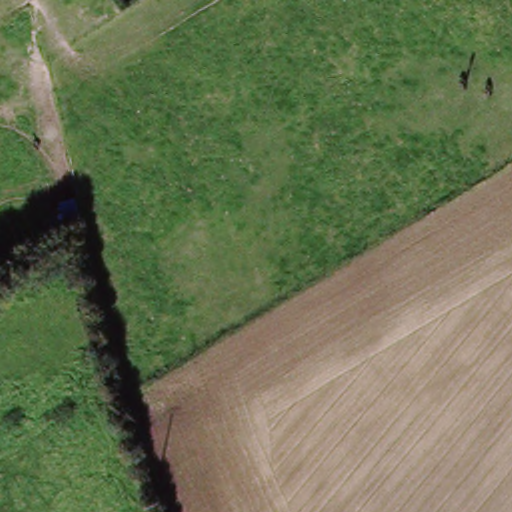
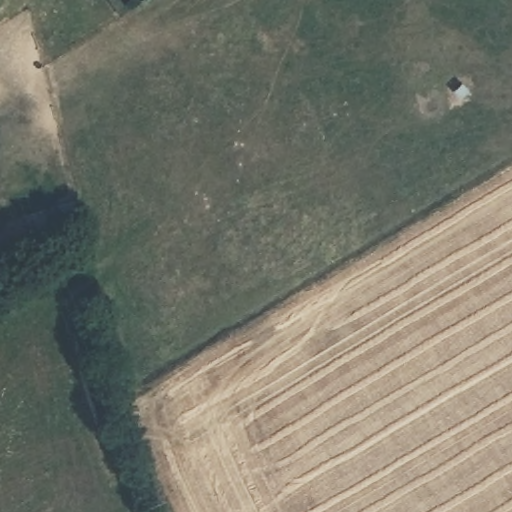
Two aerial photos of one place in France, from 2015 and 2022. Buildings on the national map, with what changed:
[]

